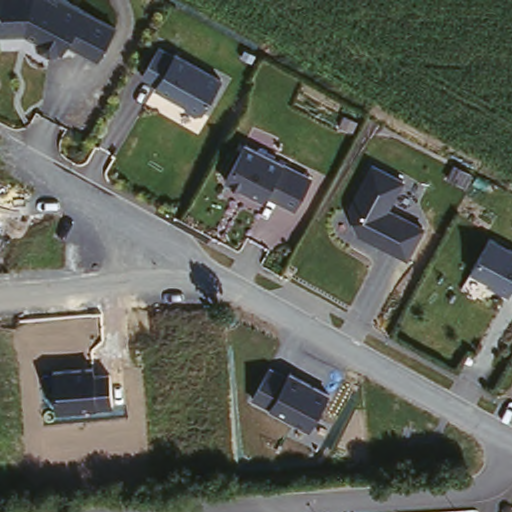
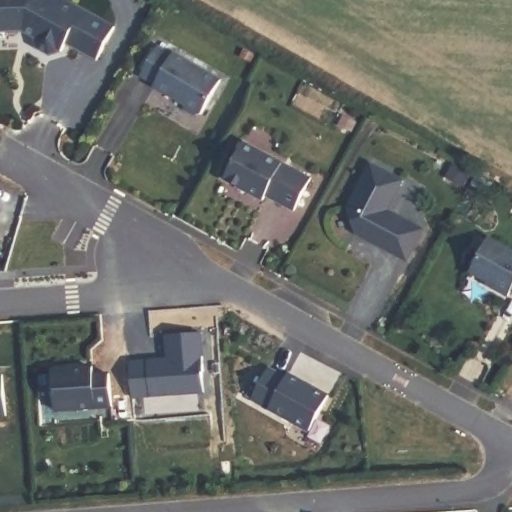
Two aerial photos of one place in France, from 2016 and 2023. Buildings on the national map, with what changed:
unchanged [(66,49),(60,51),(43,44),(40,35),(29,30),(5,30),(3,0),(77,0),(116,21),(99,58),(71,42),(66,49)]
unchanged [(175,51),(177,48),(224,75),(206,111),(161,84),(147,74),(164,44),(175,51)]
unchanged [(312,173),(297,206),(268,193),(266,199),(233,180),(251,141),(312,173)]
unchanged [(408,177),(391,208),(426,228),(409,260),(358,235),(350,200),(372,157),(408,177)]
unchanged [(512,291),(508,297),(485,286),(487,282),(470,273),(491,236),(512,247),(512,291)]
new [(133,403),(131,371),(170,368),(168,342),(203,341),(205,372),(202,372),(204,398),(133,403)]
unchanged [(96,371),(111,370),(114,405),(55,410),(52,367),(94,364),(96,371)]
unchanged [(289,373),(291,370),(334,395),(311,433),(251,398),(270,364),(289,373)]
new [(1,381),(2,419),(0,419),(0,381),(1,381)]

